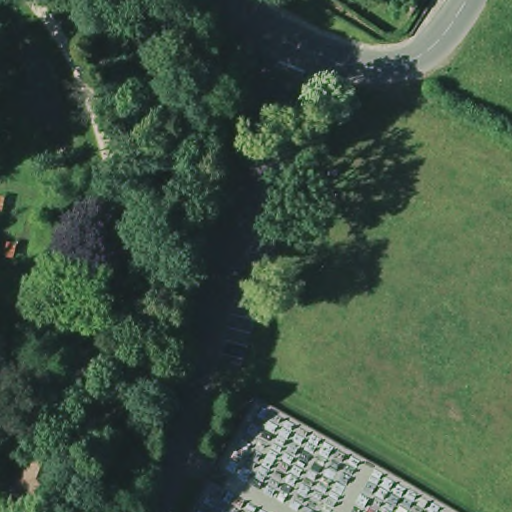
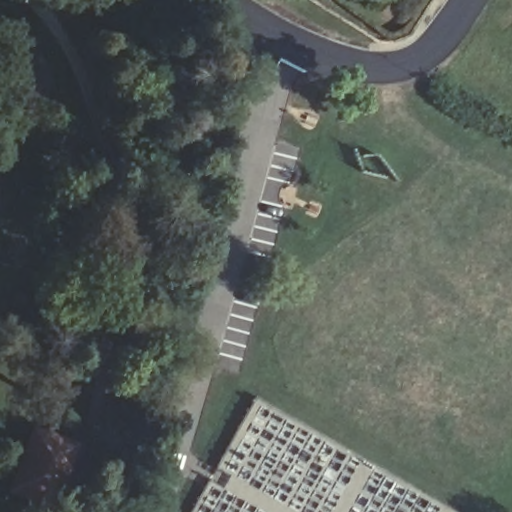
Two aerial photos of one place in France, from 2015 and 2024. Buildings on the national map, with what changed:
unchanged [(47,512),(4,512),(25,463),(60,477),(47,512)]

